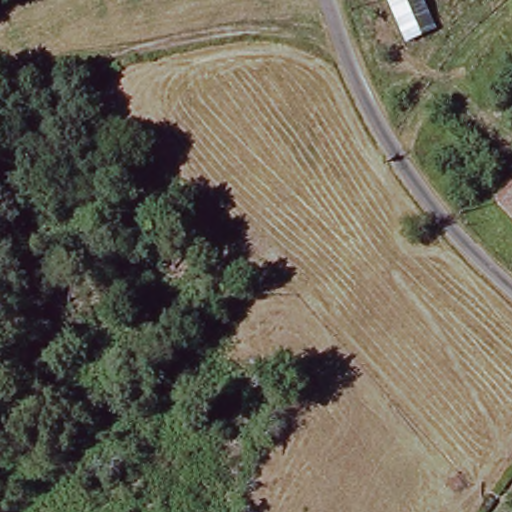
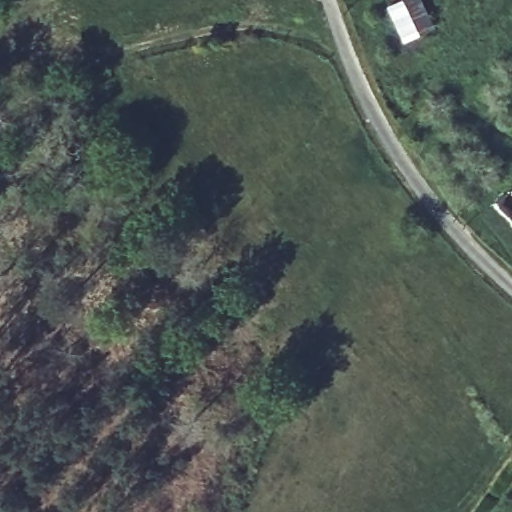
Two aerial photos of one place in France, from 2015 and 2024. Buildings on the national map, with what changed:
unchanged [(402,39),(385,0),(425,0),(436,27),(402,39)]
unchanged [(512,222),(497,207),(512,193),(512,222)]

